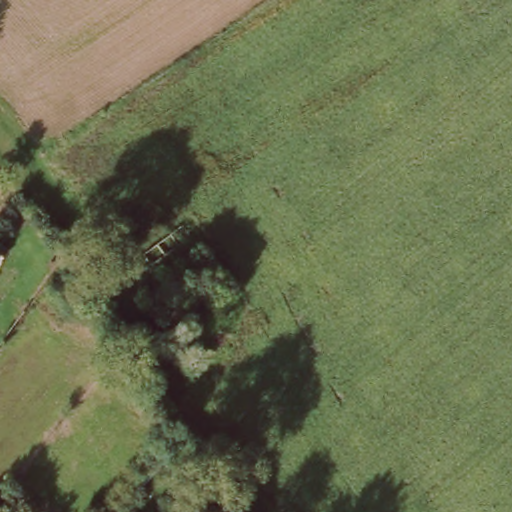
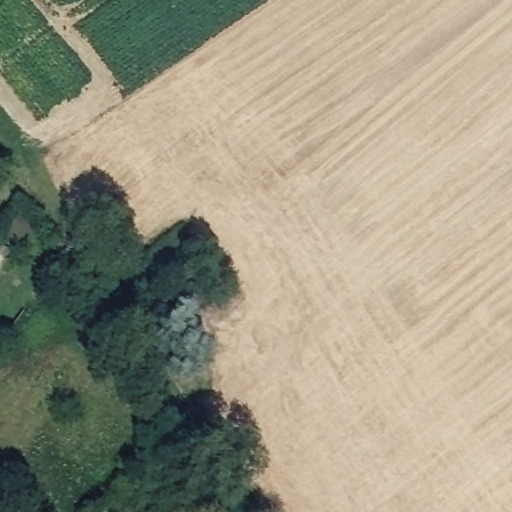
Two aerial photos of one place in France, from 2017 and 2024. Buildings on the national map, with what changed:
unchanged [(227,280),(177,321),(157,303),(210,259),(227,280)]

